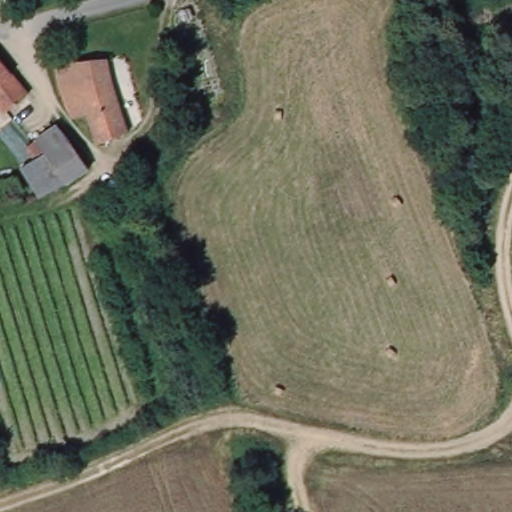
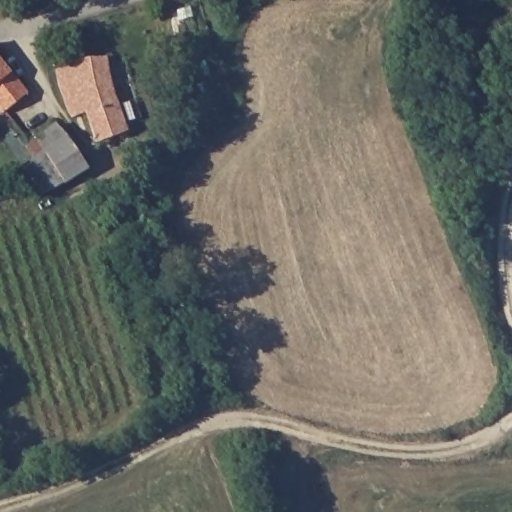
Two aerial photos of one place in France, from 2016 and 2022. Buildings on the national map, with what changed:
unchanged [(131,133),(99,144),(83,110),(68,113),(51,61),(106,53),(131,133)]
unchanged [(28,94),(5,113),(0,107),(0,59),(28,94)]
unchanged [(21,168),(33,160),(24,150),(59,122),(85,156),(92,164),(65,185),(41,199),(21,168)]

